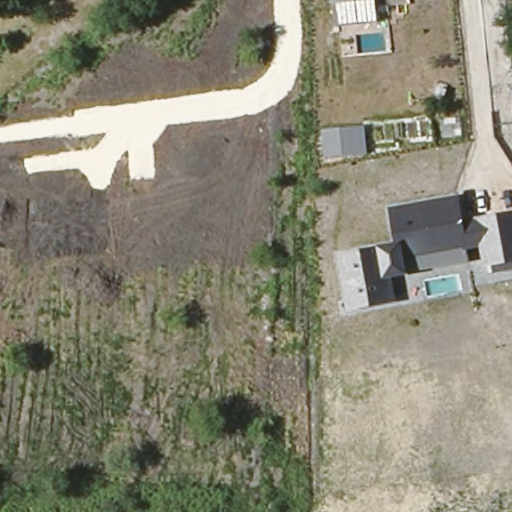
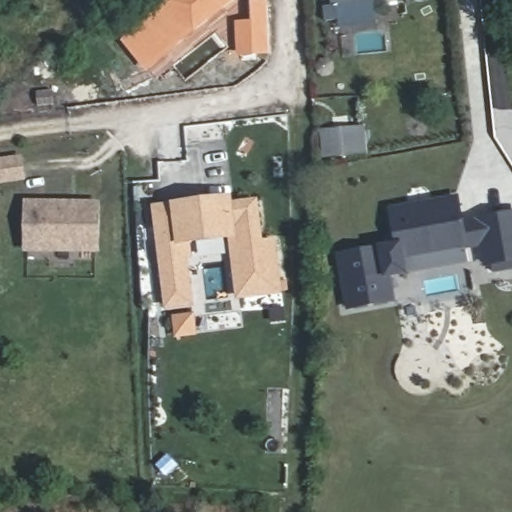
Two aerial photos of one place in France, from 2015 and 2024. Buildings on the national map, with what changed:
new [(121,40),(170,1),(172,0),(238,0),(195,34),(147,72),(121,40)]
new [(252,20),(251,0),(268,0),(269,55),(237,56),(235,21),(252,20)]
unchanged [(377,23),(340,25),(337,4),(332,5),(332,0),(405,0),(376,2),(377,23)]
unchanged [(368,155),(323,159),(321,131),(365,126),(368,155)]
new [(23,177),(0,180),(0,161),(20,158),(23,177)]
new [(208,175),(233,172),(236,195),(236,202),(261,199),(266,239),(279,238),(286,294),(237,300),(229,239),(194,244),(195,254),(191,255),(197,303),(168,306),(155,205),(211,198),(208,175)]
unchanged [(464,221),(512,214),(512,270),(498,273),(496,266),(485,268),(481,247),(469,250),(470,263),(405,274),(406,276),(394,278),(398,303),(348,312),(339,253),(396,243),(391,208),(460,196),(464,221)]
new [(26,253),(26,200),(100,201),(100,254),(26,253)]

